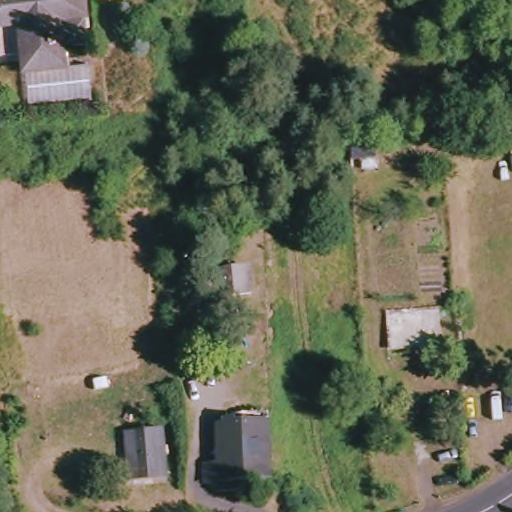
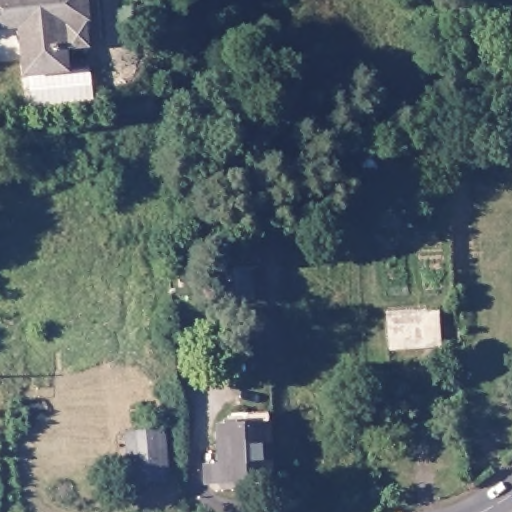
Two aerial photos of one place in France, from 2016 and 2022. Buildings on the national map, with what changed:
unchanged [(83,14),(58,15),(62,65),(86,64),(88,99),(28,102),(25,52),(0,53),(0,0),(82,0),(83,14)]
unchanged [(248,290),(216,291),(216,267),(248,267),(248,290)]
unchanged [(392,313),(445,311),(445,348),(394,350),(392,313)]
unchanged [(276,482),(211,486),(210,468),(225,467),(222,428),(273,424),(276,482)]
unchanged [(167,477),(141,479),(137,432),(163,430),(167,477)]

